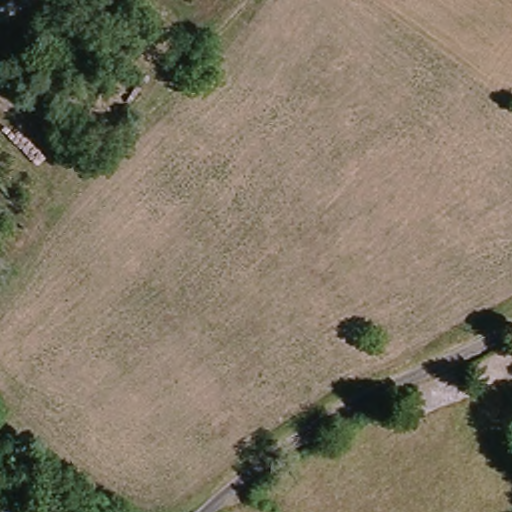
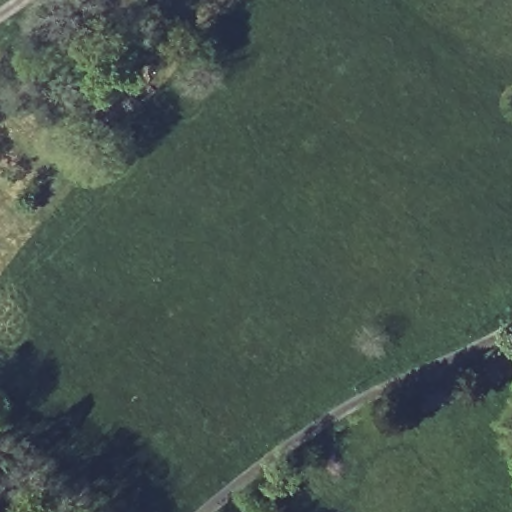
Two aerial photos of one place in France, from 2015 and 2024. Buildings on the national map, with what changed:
[]

